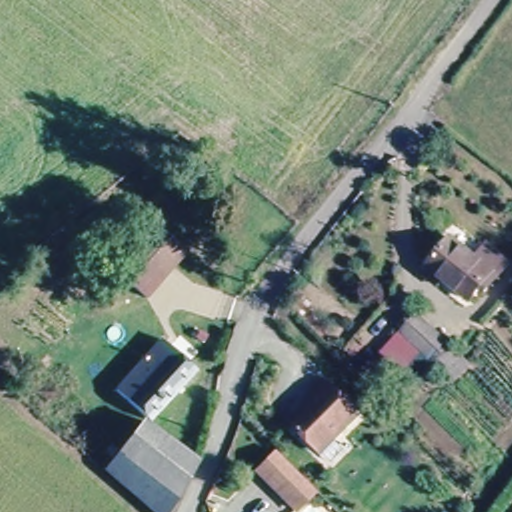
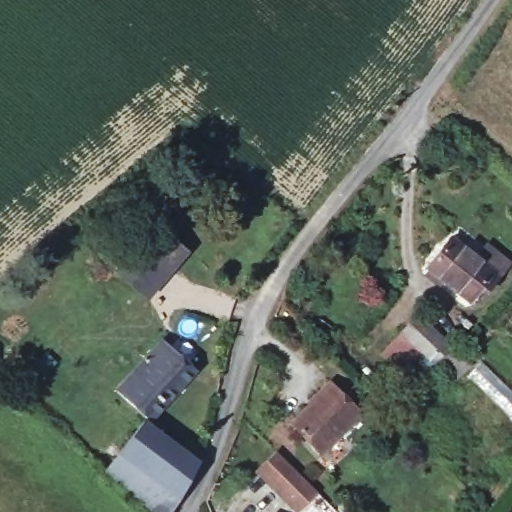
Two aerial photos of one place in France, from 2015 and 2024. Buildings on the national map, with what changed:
unchanged [(155,224),(188,252),(148,298),(115,270),(155,224)]
unchanged [(417,270),(422,264),(446,233),(471,252),(481,240),(504,258),(480,289),(475,285),(465,297),(434,273),(429,279),(417,270)]
unchanged [(448,372),(433,358),(397,324),(413,307),(465,355),(448,372)]
unchanged [(433,358),(416,376),(409,371),(407,373),(377,345),(397,324),(433,358)]
unchanged [(150,418),(117,387),(163,335),(197,367),(150,418)]
unchanged [(321,454),(292,425),(307,409),(309,411),(315,405),(311,402),(330,383),(361,414),(321,454)]
unchanged [(168,512),(159,512),(105,466),(122,445),(145,416),(200,458),(178,497),(168,512)]
unchanged [(78,429),(82,432),(75,440),(71,436),(78,429)]
unchanged [(296,511),(257,473),(277,453),(293,469),(316,492),(296,511)]

